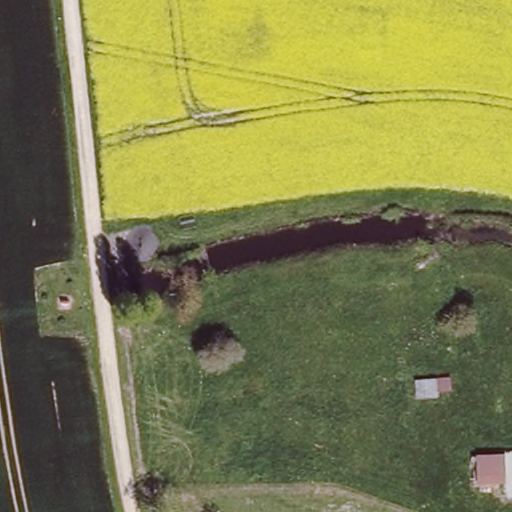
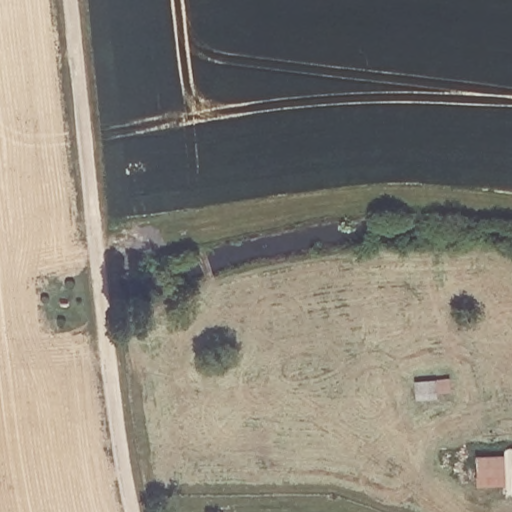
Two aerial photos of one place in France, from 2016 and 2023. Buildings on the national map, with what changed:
unchanged [(512,455),(512,483),(478,484),(478,455),(512,455)]

